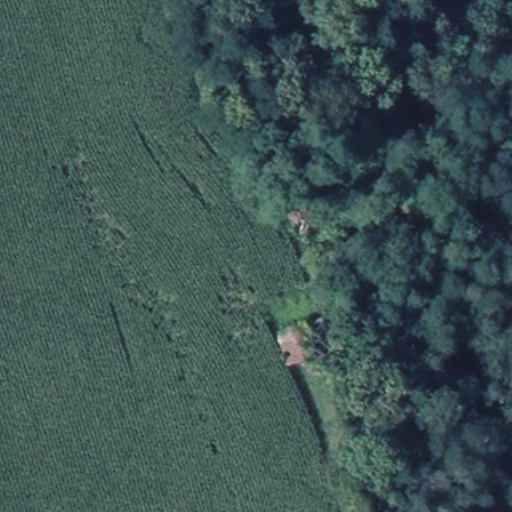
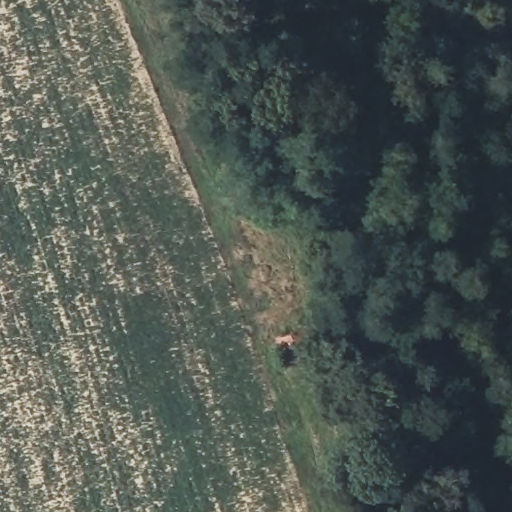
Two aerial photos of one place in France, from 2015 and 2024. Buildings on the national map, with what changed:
unchanged [(323,323),(332,350),(315,356),(317,362),(289,370),(279,337),(323,323)]

